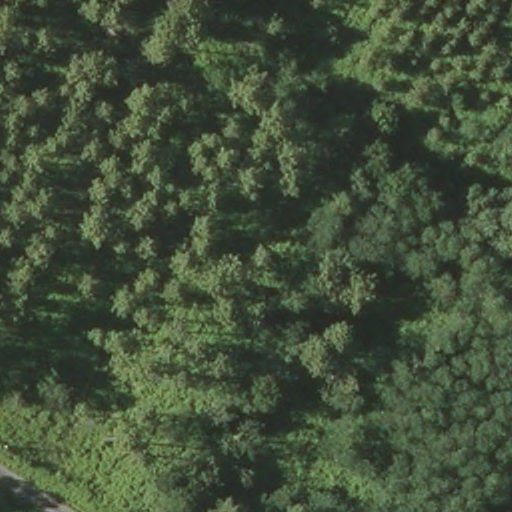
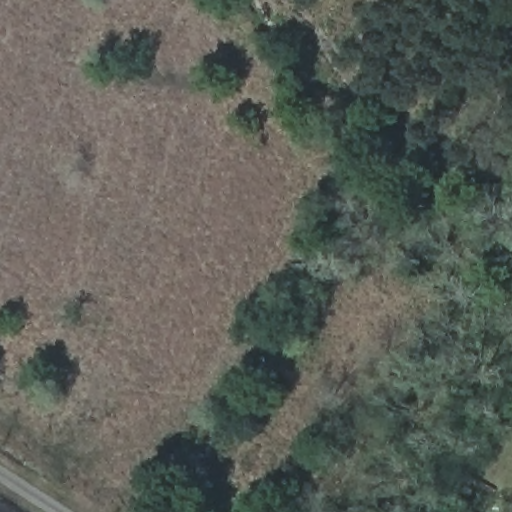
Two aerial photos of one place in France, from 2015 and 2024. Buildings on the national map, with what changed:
[]

